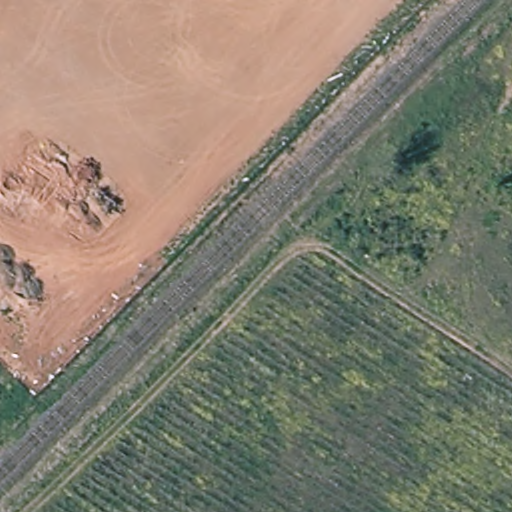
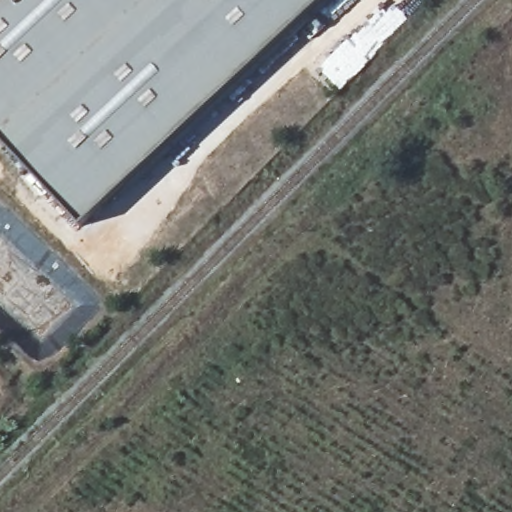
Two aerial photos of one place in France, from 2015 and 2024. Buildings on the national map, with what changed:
new [(81,226),(0,138),(0,0),(321,0),(81,226)]

